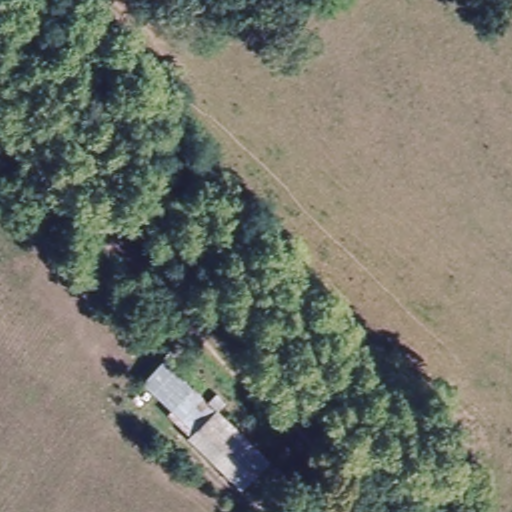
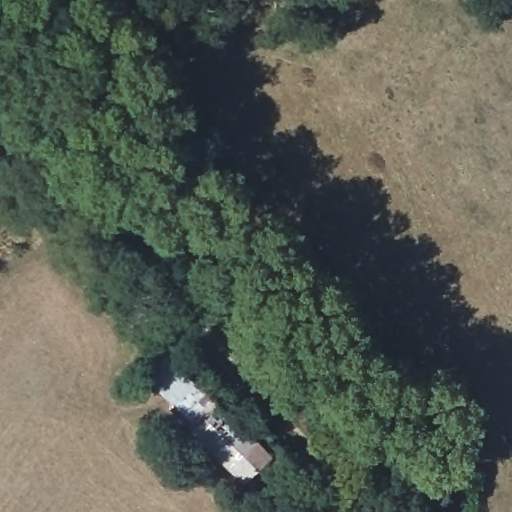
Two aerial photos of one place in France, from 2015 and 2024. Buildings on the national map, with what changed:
unchanged [(203,387),(175,418),(167,411),(172,406),(144,379),(168,354),(203,387)]
unchanged [(175,418),(203,387),(225,413),(198,439),(175,418)]
unchanged [(225,413),(270,462),(243,488),(198,439),(225,413)]

